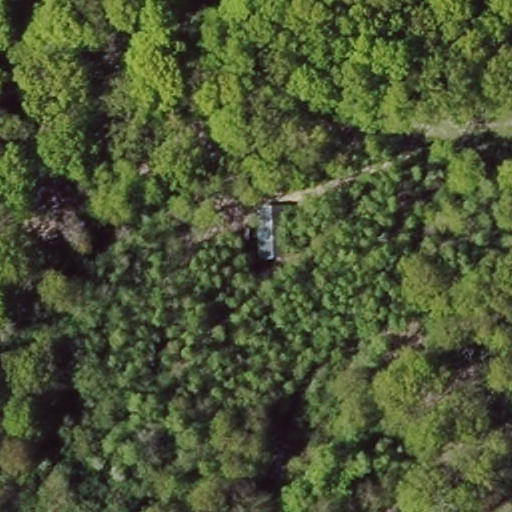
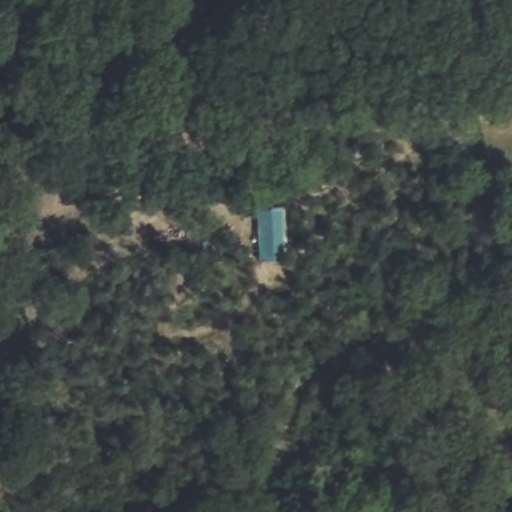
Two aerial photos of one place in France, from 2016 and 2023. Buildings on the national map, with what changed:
unchanged [(283,205),(285,259),(257,260),(255,206),(283,205)]

